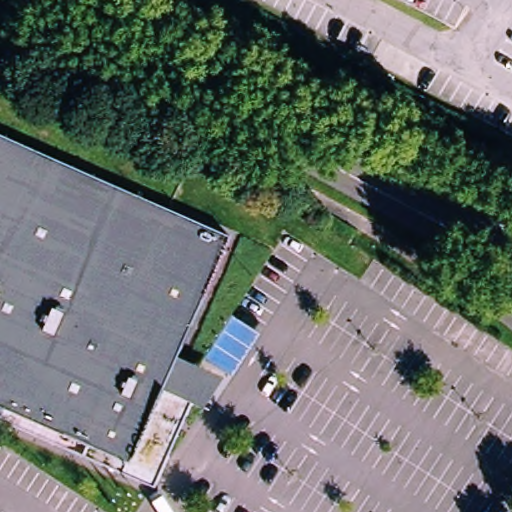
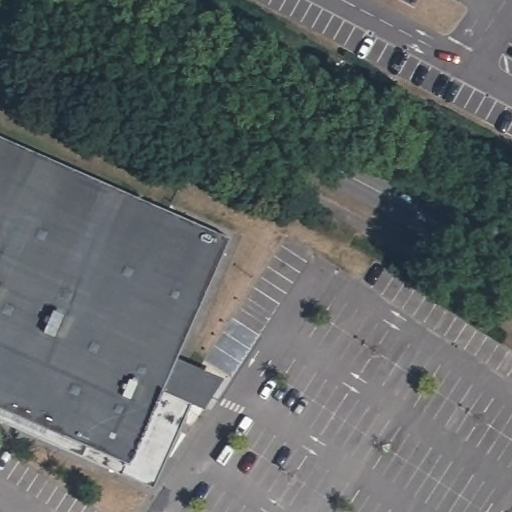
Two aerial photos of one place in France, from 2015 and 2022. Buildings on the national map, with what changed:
unchanged [(147,487),(0,422),(0,139),(228,239),(171,365),(188,372),(178,396),(191,402),(163,462),(151,489),(147,487)]

